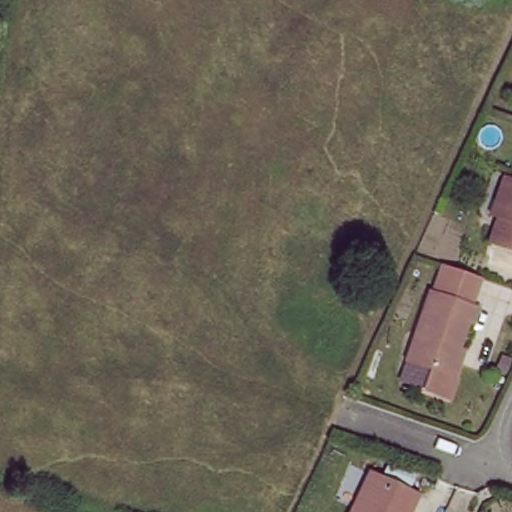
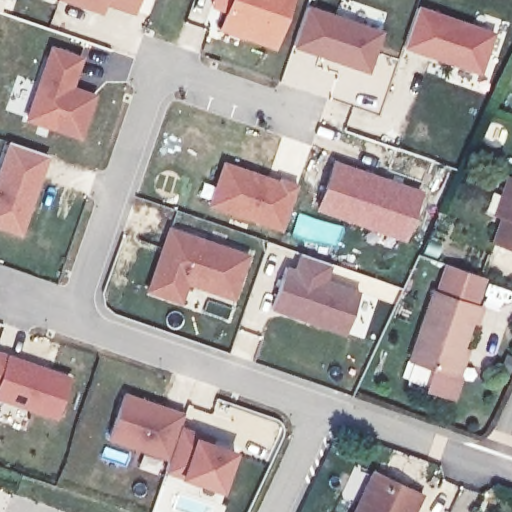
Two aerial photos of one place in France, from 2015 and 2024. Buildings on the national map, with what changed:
new [(133,13),(97,0),(137,0),(133,13)]
new [(279,51),(223,30),(234,0),(297,0),(279,51)]
new [(309,5),(384,31),(369,74),(294,48),(309,5)]
new [(418,5),(496,33),(481,75),(404,49),(418,5)]
new [(83,58),(75,86),(98,94),(81,141),(25,121),(50,46),(83,58)]
new [(25,239),(0,229),(0,171),(10,143),(53,160),(25,239)]
new [(223,161),(280,180),(281,178),(299,185),(282,232),(206,206),(223,161)]
new [(415,190),(397,240),(319,211),(336,162),(415,190)]
unchanged [(492,252),(512,190),(512,259),(492,252)]
new [(249,255),(235,298),(186,282),(180,298),(150,287),(171,227),(249,255)]
demolished [(305,269),(309,247),(350,256),(346,274),(305,269)]
new [(286,265),(294,268),(299,253),(333,265),(326,280),(360,293),(345,335),(271,310),(286,265)]
unchanged [(458,373),(455,372),(448,392),(420,383),(427,362),(405,355),(431,287),(435,289),(444,262),(466,270),(483,276),(474,302),(483,305),(478,320),(469,318),(458,343),(468,346),(458,373)]
new [(57,421),(0,401),(0,350),(71,377),(57,421)]
new [(125,393),(186,413),(185,425),(171,461),(107,439),(125,393)]
new [(203,433),(201,436),(242,451),(228,492),(186,477),(188,473),(168,467),(185,425),(203,433)]
unchanged [(418,499),(411,512),(352,512),(371,475),(418,499)]

